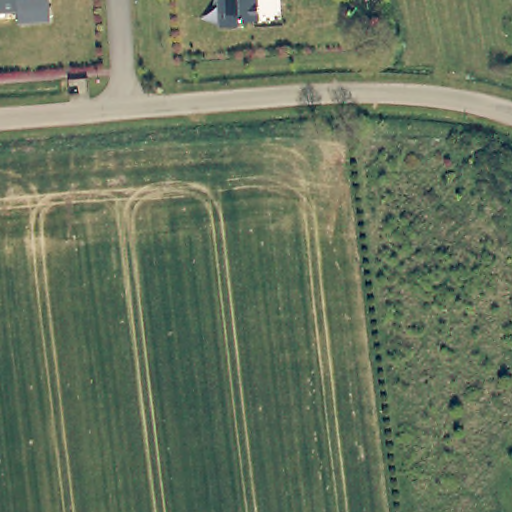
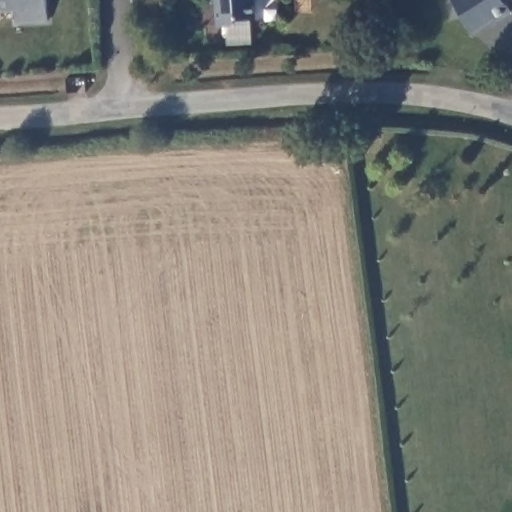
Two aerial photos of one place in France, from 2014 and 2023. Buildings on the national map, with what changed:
unchanged [(50,25),(17,26),(16,14),(0,15),(0,0),(49,0),(50,25)]
unchanged [(258,20),(243,20),(237,26),(222,27),(221,4),(217,5),(217,0),(258,0),(258,20)]
new [(507,3),(512,11),(512,13),(498,21),(497,20),(476,32),(454,0),(512,0),(507,3)]

